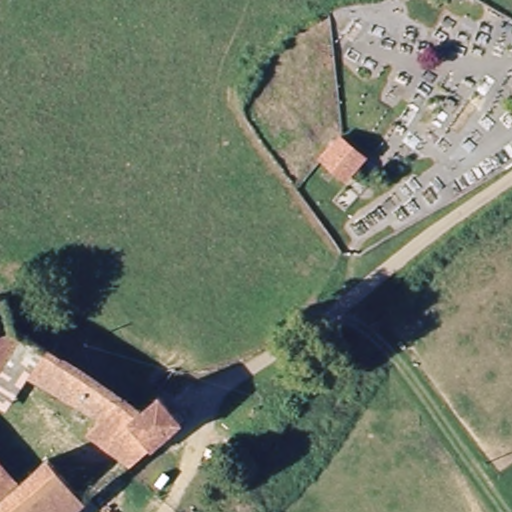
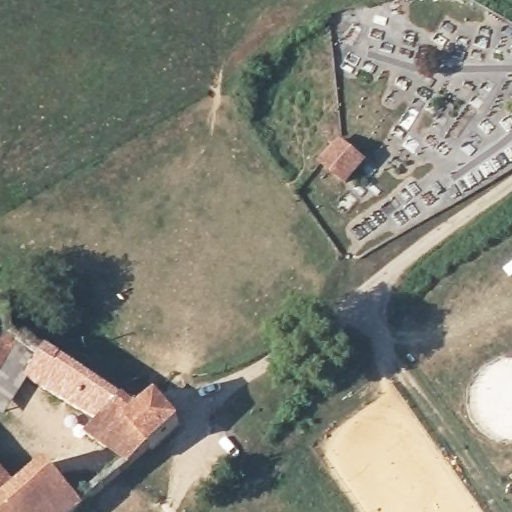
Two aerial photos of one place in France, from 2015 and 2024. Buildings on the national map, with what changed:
unchanged [(339,143),(363,160),(344,183),(321,167),(339,143)]
unchanged [(2,305),(13,338),(139,419),(157,405),(181,427),(133,470),(113,450),(106,457),(88,440),(97,425),(31,382),(20,399),(0,386),(0,305),(2,305)]
unchanged [(11,489),(28,474),(38,485),(53,471),(88,509),(84,512),(0,512),(0,477),(11,489)]
unchanged [(110,473),(119,482),(102,496),(95,489),(110,473)]

